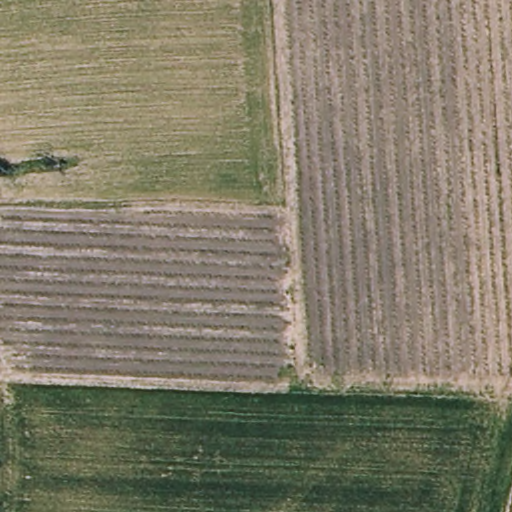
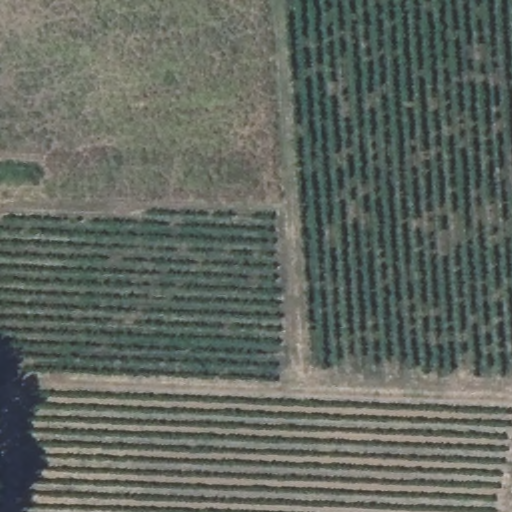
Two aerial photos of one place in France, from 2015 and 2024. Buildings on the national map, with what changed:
[]

